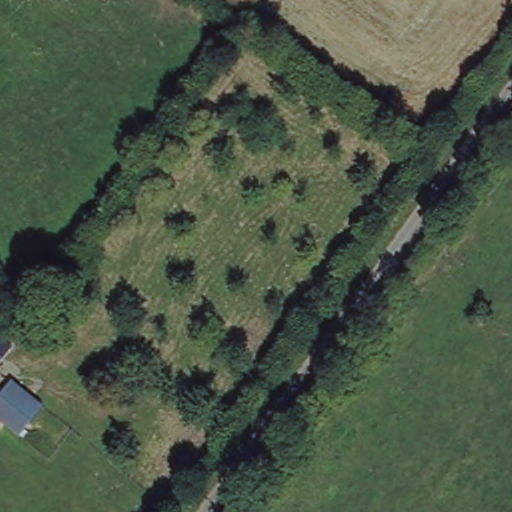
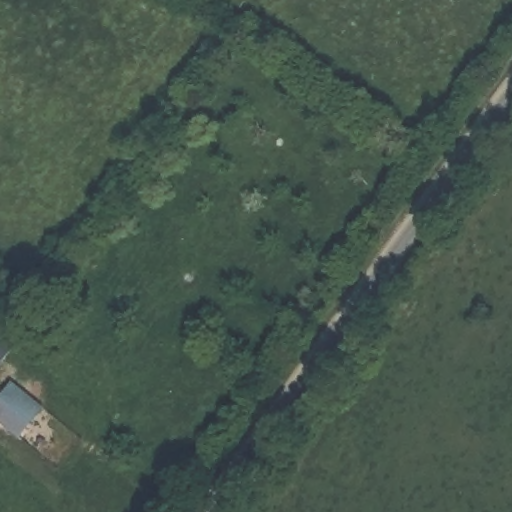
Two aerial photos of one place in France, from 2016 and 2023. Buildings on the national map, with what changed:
unchanged [(0,333),(11,343),(0,356),(0,333)]
unchanged [(17,432),(0,417),(0,392),(13,377),(43,403),(17,432)]

